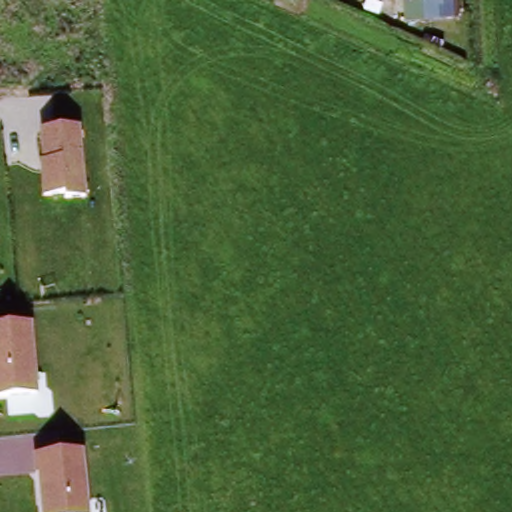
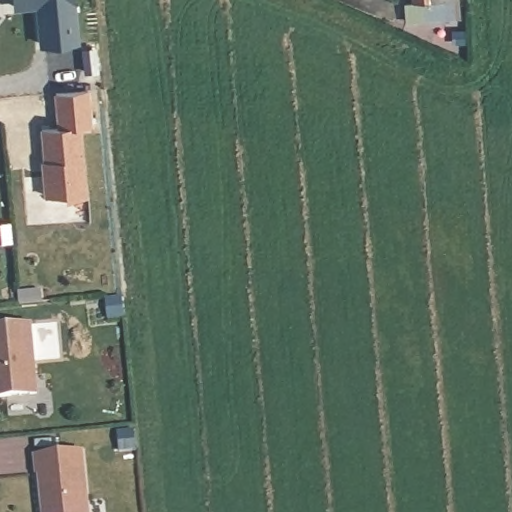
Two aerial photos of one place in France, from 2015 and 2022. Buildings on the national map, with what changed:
new [(42,45),(39,5),(17,7),(16,0),(74,0),(77,41),(42,45)]
unchanged [(409,25),(407,4),(414,2),(414,0),(456,0),(457,20),(409,25)]
unchanged [(82,129),(87,198),(64,199),(63,195),(41,197),(39,164),(42,163),(39,132),(82,129)]
unchanged [(32,322),(37,392),(0,397),(0,324),(32,322)]
unchanged [(39,475),(35,475),(32,452),(85,448),(90,512),(43,512),(39,475)]

